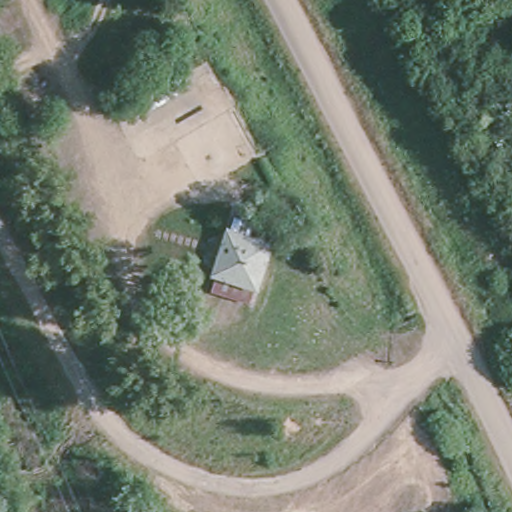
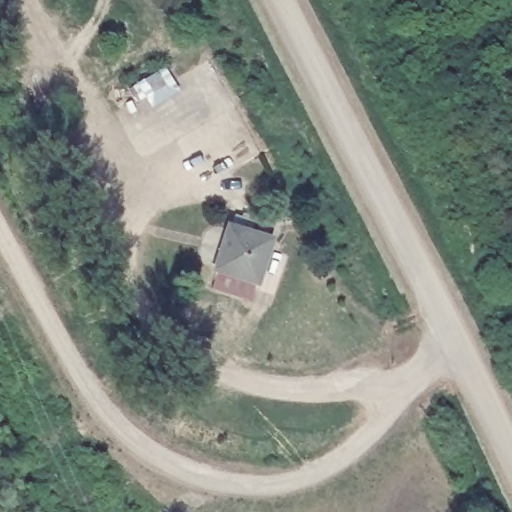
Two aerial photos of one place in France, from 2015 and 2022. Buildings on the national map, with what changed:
unchanged [(269,240),(255,281),(216,269),(229,228),(269,240)]

